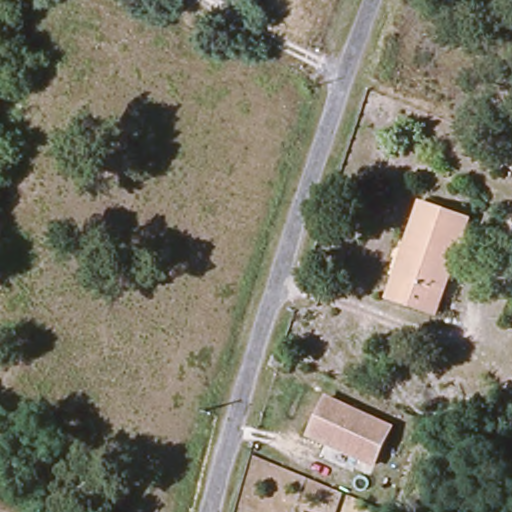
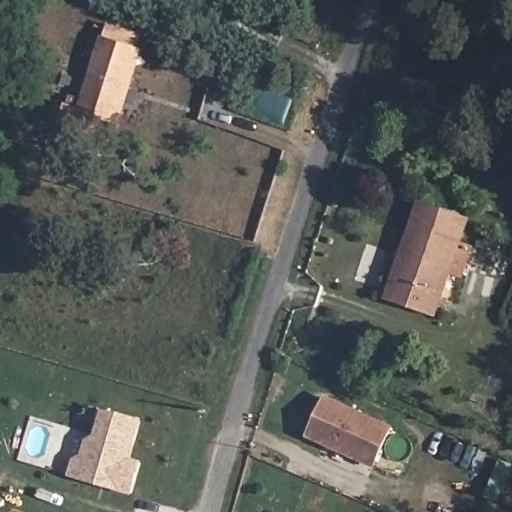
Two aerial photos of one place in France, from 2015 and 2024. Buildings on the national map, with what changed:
new [(118,126),(75,112),(100,35),(141,50),(118,126)]
unchanged [(419,199),(467,215),(437,308),(391,294),(419,199)]
unchanged [(322,394),(388,420),(374,459),(307,432),(322,394)]
new [(132,495),(66,477),(71,459),(79,456),(84,440),(93,435),(100,410),(141,420),(130,460),(141,462),(132,495)]

